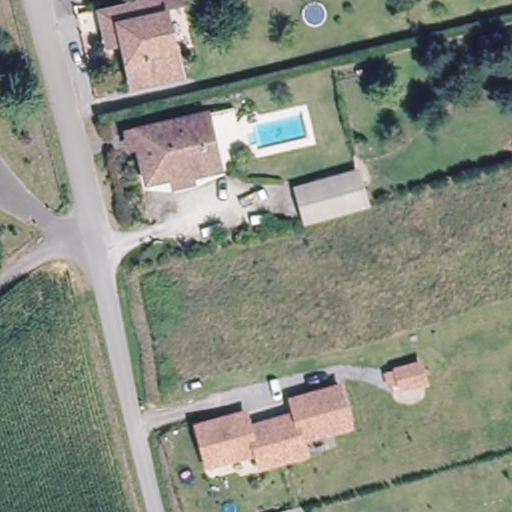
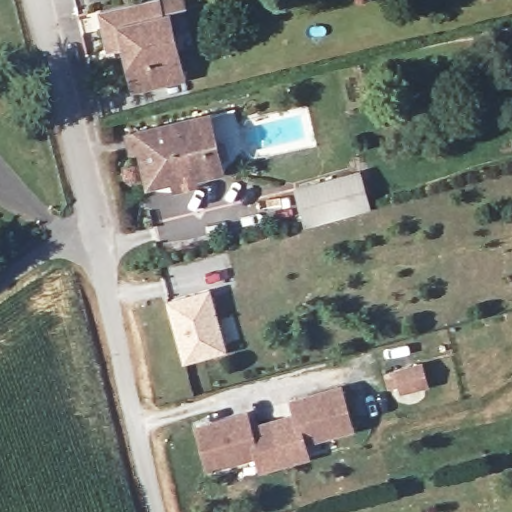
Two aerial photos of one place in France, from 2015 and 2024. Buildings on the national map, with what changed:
unchanged [(108,48),(100,11),(149,0),(184,0),(185,6),(168,9),(168,11),(116,22),(122,45),(108,48)]
unchanged [(185,78),(133,89),(124,45),(122,45),(116,22),(168,11),(185,78)]
unchanged [(221,170),(192,178),(193,183),(178,186),(175,178),(149,184),(139,146),(131,149),(127,134),(207,114),(221,170)]
unchanged [(343,210),(310,219),(300,183),(360,167),(370,203),(343,210)]
new [(186,295),(187,300),(192,299),(191,293),(209,289),(225,349),(184,360),(167,299),(186,295)]
unchanged [(425,384),(401,391),(399,381),(389,383),(387,374),(396,372),(420,365),(425,384)]
unchanged [(257,455),(208,469),(197,427),(245,414),(249,428),(296,415),(292,401),(340,387),(351,428),(303,442),(307,456),(261,469),(257,455)]

